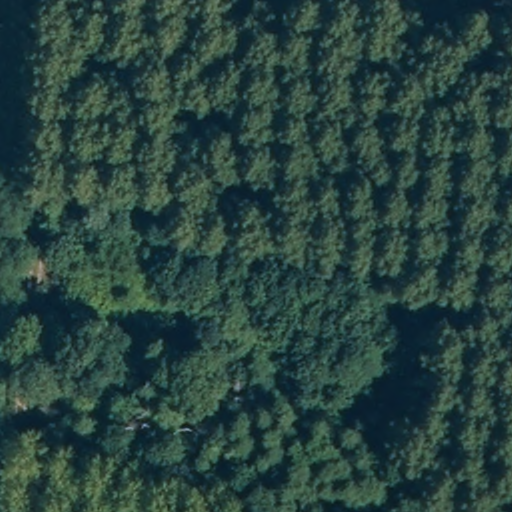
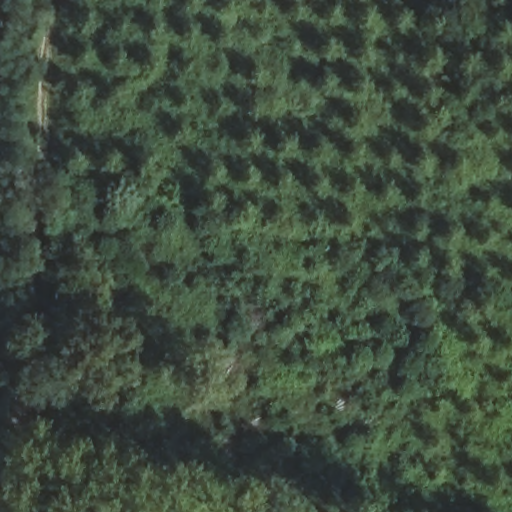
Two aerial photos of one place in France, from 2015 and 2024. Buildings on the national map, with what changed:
[]

